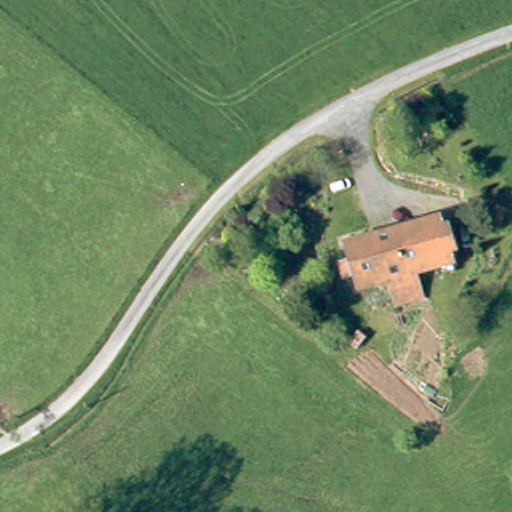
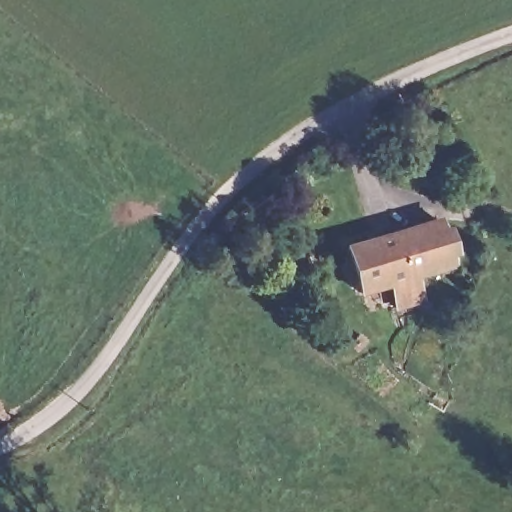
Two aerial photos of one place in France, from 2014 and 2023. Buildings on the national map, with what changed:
unchanged [(411,288),(380,293),(377,274),(352,278),(345,232),(427,219),(435,265),(408,269),(411,288)]

